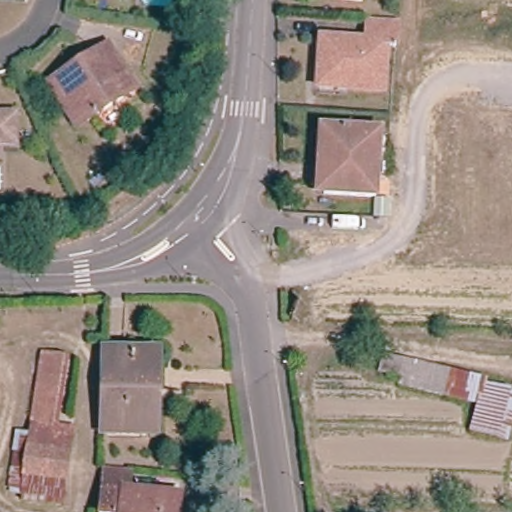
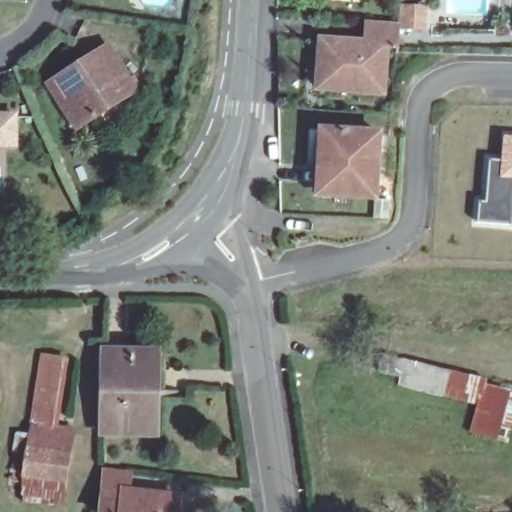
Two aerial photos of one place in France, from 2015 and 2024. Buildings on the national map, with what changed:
unchanged [(317,74),(317,40),(363,44),(364,26),(393,29),(392,48),(383,47),(380,94),(324,90),(316,89),(317,74)]
unchanged [(125,93),(66,132),(36,88),(54,76),(79,58),(94,48),(125,93)]
unchanged [(9,149),(0,149),(0,118),(9,118),(9,149)]
unchanged [(373,129),(370,191),(315,188),(318,127),(373,129)]
new [(501,163),(503,136),(512,137),(512,208),(511,224),(477,222),(479,203),(487,203),(490,162),(501,163)]
unchanged [(381,193),(384,193),(383,212),(380,211),(368,211),(369,192),(381,193)]
unchanged [(147,435),(101,434),(105,350),(157,352),(157,391),(157,435),(147,435)]
unchanged [(32,426),(44,358),(69,363),(57,429),(32,426)]
unchanged [(458,376),(500,388),(498,392),(512,396),(512,432),(508,445),(480,438),(488,409),(461,401),(422,390),(411,387),(412,381),(390,375),(394,358),(458,376)]
unchanged [(75,432),(71,457),(27,451),(32,426),(57,429),(75,432)]
unchanged [(65,489),(22,483),(27,451),(71,457),(65,489)]
unchanged [(99,512),(102,489),(102,473),(104,470),(126,471),(125,476),(124,490),(179,497),(177,512),(99,512)]
unchanged [(61,512),(51,512),(19,507),(22,483),(65,489),(61,512)]

